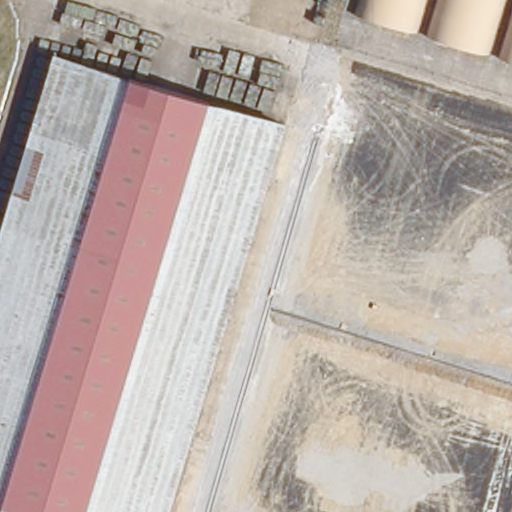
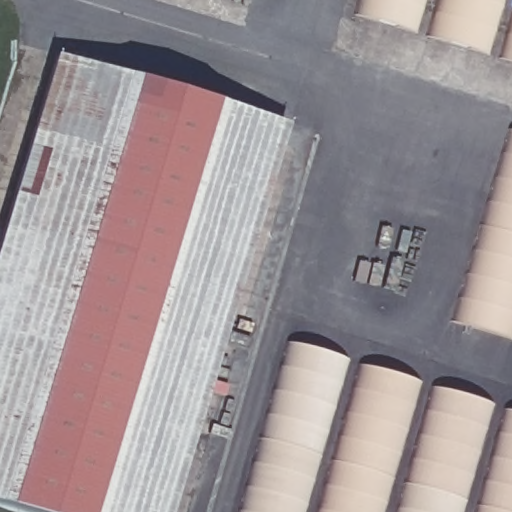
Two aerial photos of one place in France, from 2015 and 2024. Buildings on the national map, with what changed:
unchanged [(359,15),(363,0),(421,0),(412,30),(359,15)]
unchanged [(430,36),(439,0),(500,0),(485,51),(430,36)]
unchanged [(502,59),(512,19),(512,62),(502,59)]
unchanged [(163,512),(25,512),(0,505),(0,202),(45,52),(283,116),(163,512)]
new [(508,337),(453,321),(510,129),(512,130),(512,323),(508,337)]
new [(289,341),(351,361),(306,512),(239,512),(289,341)]
new [(386,512),(317,512),(362,366),(422,383),(386,512)]
new [(434,387),(494,405),(463,512),(398,512),(434,387)]
new [(506,409),(512,411),(512,512),(475,512),(506,409)]

